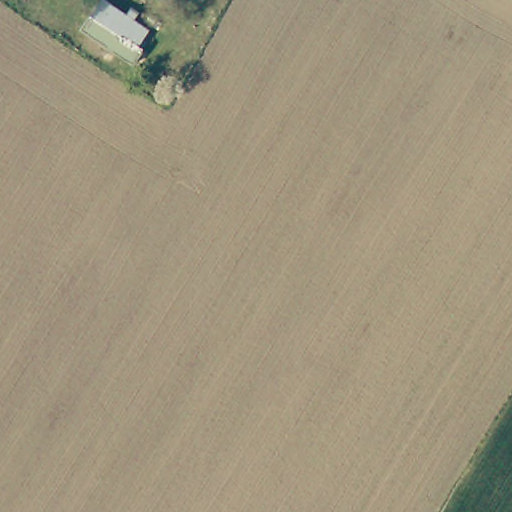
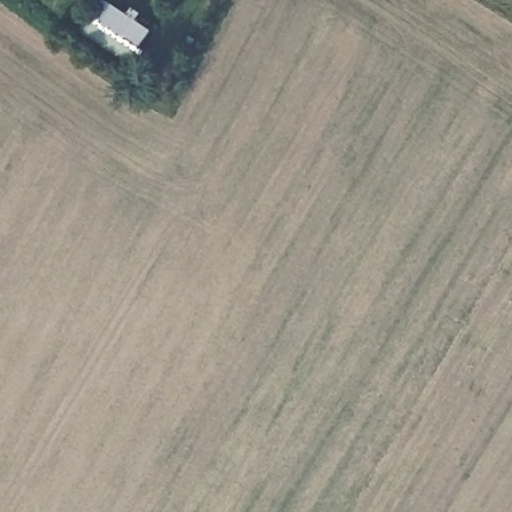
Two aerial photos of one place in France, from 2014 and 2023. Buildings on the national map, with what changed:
unchanged [(146,51),(135,64),(83,30),(100,0),(105,0),(151,31),(141,45),(146,51)]

